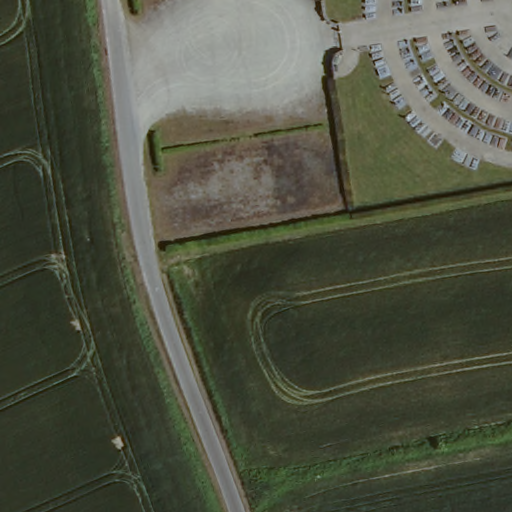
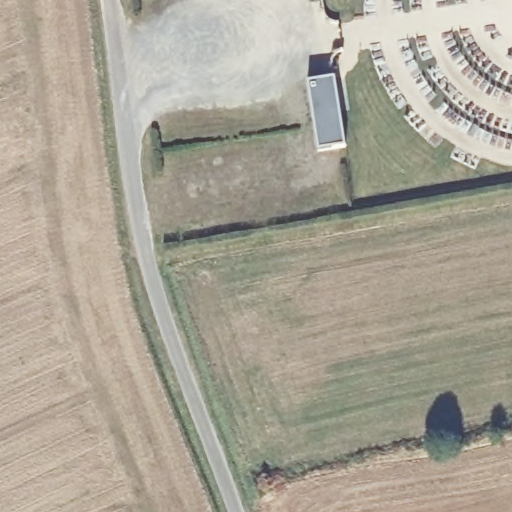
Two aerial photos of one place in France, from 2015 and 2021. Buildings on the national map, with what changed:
new [(318,147),(310,91),(307,78),(335,74),(337,87),(346,142),(318,147)]

